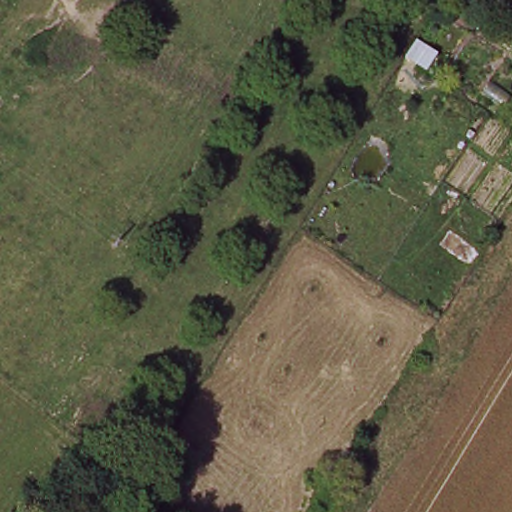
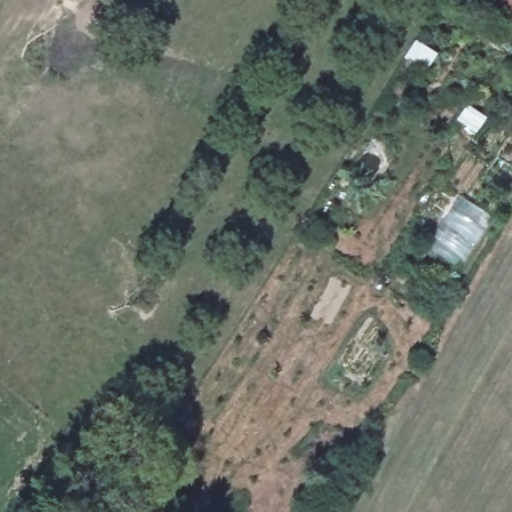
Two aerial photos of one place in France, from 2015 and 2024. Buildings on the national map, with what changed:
unchanged [(512,5),(506,0),(512,0),(512,5)]
new [(467,103),(487,119),(473,137),(454,121),(467,103)]
new [(458,193),(497,219),(459,272),(423,246),(458,193)]

